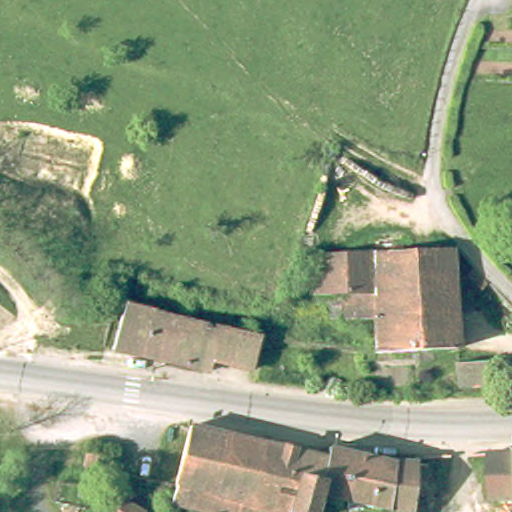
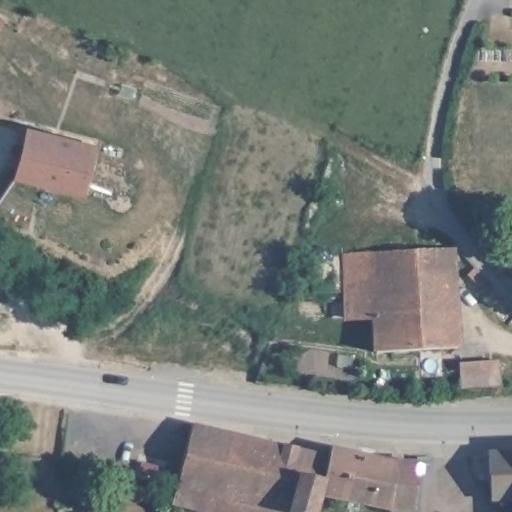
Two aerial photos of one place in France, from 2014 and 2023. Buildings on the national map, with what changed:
new [(26,127),(95,145),(82,197),(12,178),(26,127)]
unchanged [(372,348),(369,312),(345,316),(342,254),(444,244),(450,345),(372,348)]
demolished [(151,307),(150,310),(257,331),(250,370),(206,362),(204,369),(115,351),(110,350),(110,347),(121,301),(151,307)]
unchanged [(453,361),(491,357),(493,380),(455,383),(453,361)]
unchanged [(298,511),(285,508),(285,512),(209,512),(175,506),(175,501),(178,487),(190,426),(330,455),(325,484),(319,512),(298,512),(298,511)]
unchanged [(325,484),(330,455),(333,442),(416,458),(417,505),(325,484)]
unchanged [(510,492),(481,493),(478,446),(512,443),(512,512),(511,512),(510,492)]
unchanged [(80,469),(82,456),(107,460),(105,473),(80,469)]
unchanged [(124,510),(127,512),(123,512),(124,510)]

